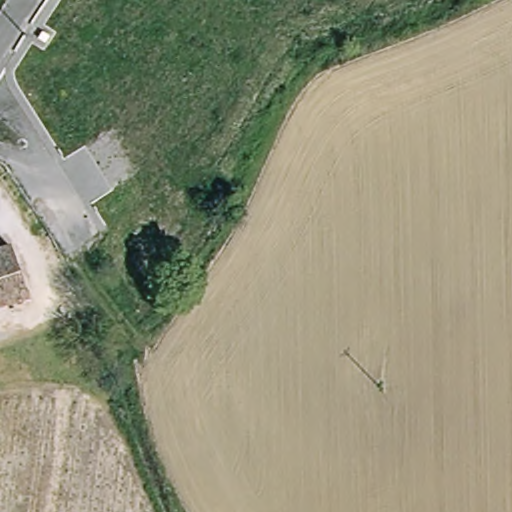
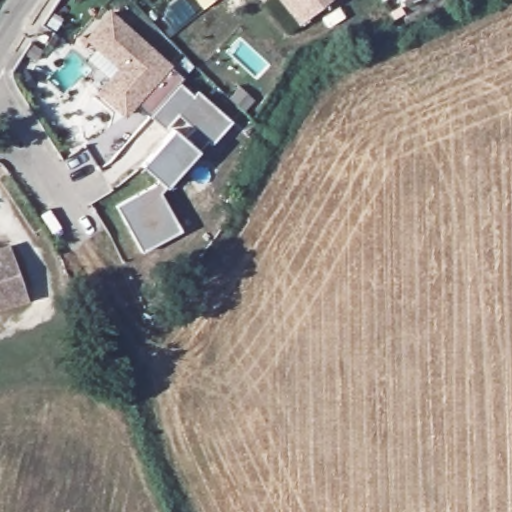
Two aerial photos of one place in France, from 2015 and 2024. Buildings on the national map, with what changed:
new [(213,1),(212,0),(214,0),(213,1)]
new [(298,24),(279,0),(327,0),(298,24)]
new [(136,105),(124,118),(95,93),(117,69),(84,39),(110,11),(172,66),(171,67),(183,79),(178,83),(148,117),(136,105)]
new [(114,206),(152,186),(157,180),(139,165),(172,129),(182,137),(190,127),(176,114),(162,130),(148,117),(178,83),(192,95),(196,90),(230,121),(210,145),(204,140),(158,192),(180,230),(140,252),(114,206)]
unchanged [(10,242),(27,298),(0,307),(0,245),(10,242)]

